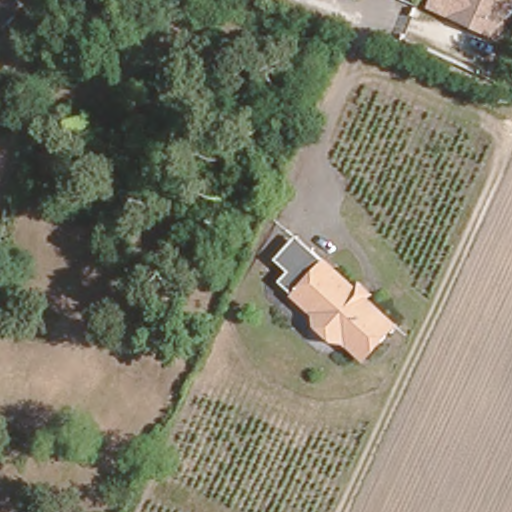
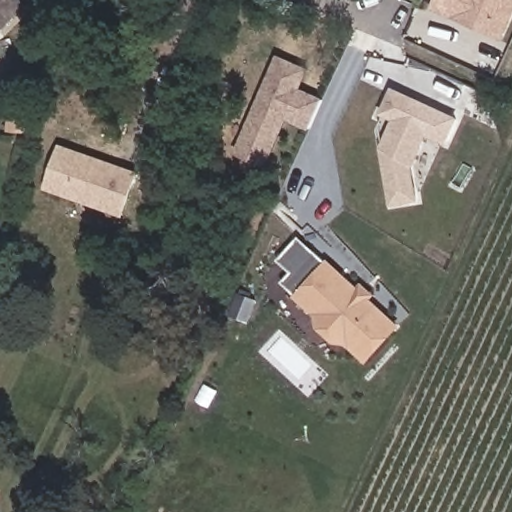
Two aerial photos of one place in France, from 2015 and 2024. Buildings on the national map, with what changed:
unchanged [(0,28),(0,0),(28,0),(0,28)]
unchanged [(482,28),(484,25),(478,22),(476,25),(435,7),(438,0),(512,0),(512,3),(497,35),(482,28)]
new [(310,67),(301,89),(323,98),(310,130),(286,120),(265,168),(234,154),(277,55),(310,67)]
new [(460,117),(445,147),(427,137),(412,169),(418,202),(390,207),(385,152),(400,119),(382,114),(395,88),(460,117)]
new [(43,190),(60,144),(139,172),(122,217),(43,190)]
unchanged [(283,285),(293,275),(280,263),(301,240),(315,252),(357,291),(363,286),(376,297),(370,303),(398,328),(367,361),(348,343),(337,342),(321,327),(318,317),(299,298),(283,285)]

